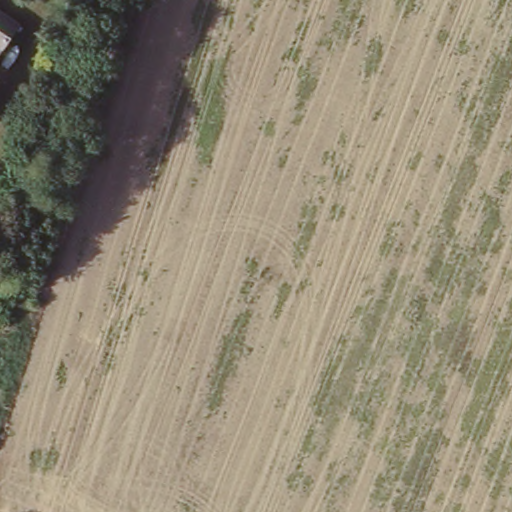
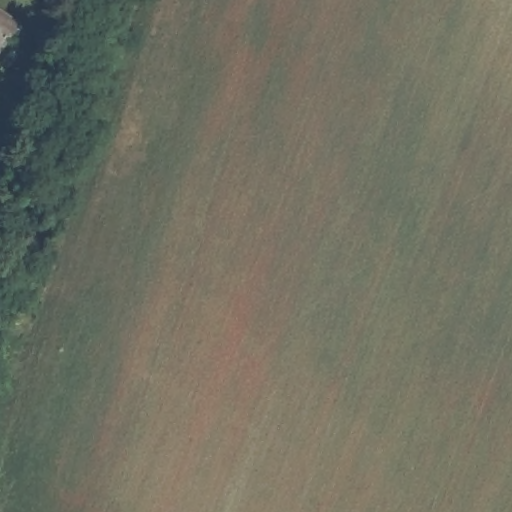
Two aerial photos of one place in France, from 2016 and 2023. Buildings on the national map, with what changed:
unchanged [(1,64),(0,63),(0,12),(23,25),(1,64)]

